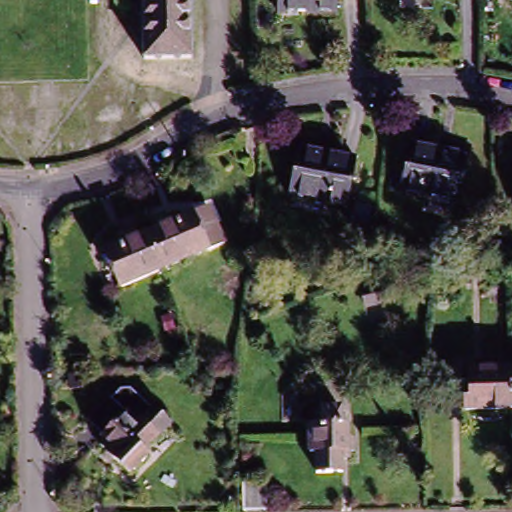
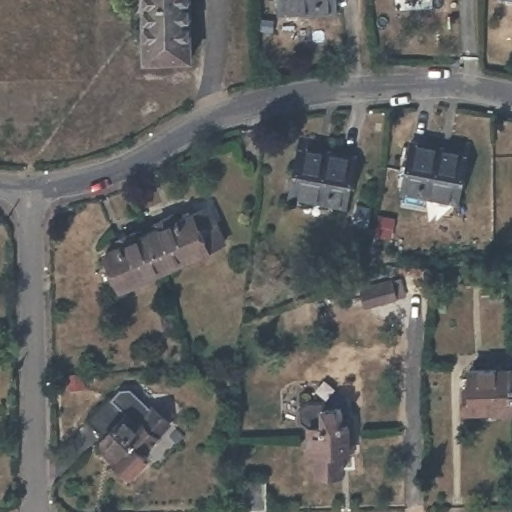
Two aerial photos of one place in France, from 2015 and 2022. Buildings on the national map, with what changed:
unchanged [(185,61),(140,62),(139,0),(184,0),(185,61)]
unchanged [(333,20),(273,21),(273,0),(332,0),(333,20)]
unchanged [(492,2),(492,0),(512,0),(512,6),(492,2)]
unchanged [(342,213),(282,201),(293,146),(317,151),(315,157),(352,165),(342,213)]
unchanged [(455,214),(395,203),(403,156),(443,163),(445,155),(465,159),(455,214)]
unchanged [(510,215),(510,159),(512,159),(512,215),(510,215)]
unchanged [(155,236),(153,230),(164,225),(170,223),(173,228),(187,222),(205,214),(220,250),(203,258),(160,276),(144,240),(155,236)]
unchanged [(100,259),(115,253),(113,247),(120,244),(131,239),(134,245),(144,240),(160,276),(115,294),(100,259)]
unchanged [(393,280),(398,297),(366,306),(362,289),(393,280)]
unchanged [(460,415),(460,393),(465,393),(465,377),(507,377),(507,414),(460,415)]
unchanged [(507,377),(512,377),(512,414),(507,414),(507,377)]
unchanged [(127,400),(134,399),(157,421),(159,419),(174,434),(147,463),(151,468),(135,485),(105,457),(109,453),(106,450),(109,446),(94,432),(115,409),(117,411),(127,400)]
unchanged [(347,469),(347,484),(322,484),(321,463),(315,462),(315,437),(305,431),(305,418),(312,412),(326,411),(327,423),(346,423),(346,438),(352,438),(353,452),(359,452),(360,463),(353,462),(354,470),(347,469)]
unchanged [(264,483),(265,510),(245,510),(245,483),(264,483)]

